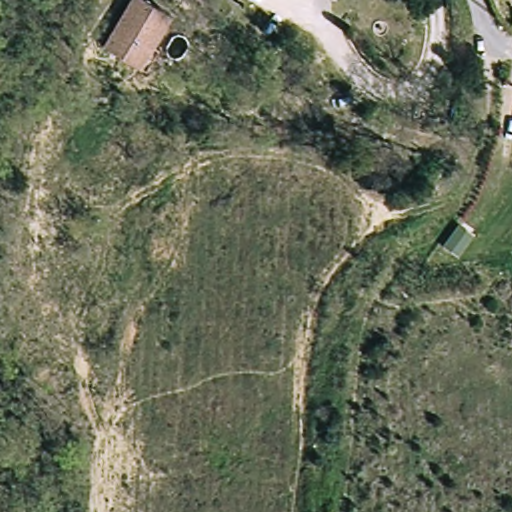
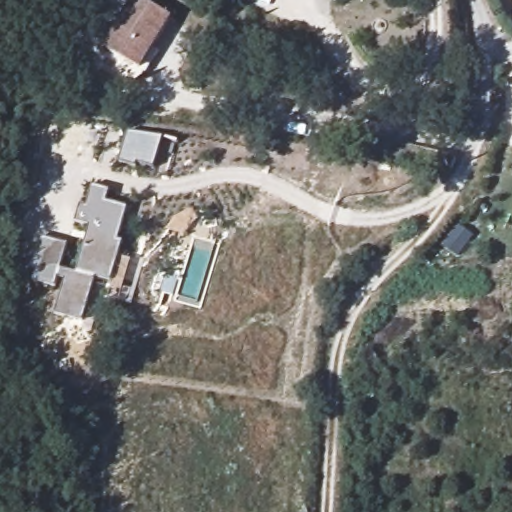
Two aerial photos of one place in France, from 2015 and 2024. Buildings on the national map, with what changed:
unchanged [(141,70),(98,44),(125,0),(144,0),(167,14),(148,45),(154,49),(141,70)]
new [(118,241),(123,243),(111,283),(95,279),(82,323),(54,315),(65,280),(57,278),(54,286),(34,280),(37,268),(33,266),(40,237),(66,244),(60,270),(76,274),(92,225),(76,221),(81,205),(86,208),(91,188),(109,192),(105,204),(129,210),(118,241)]

